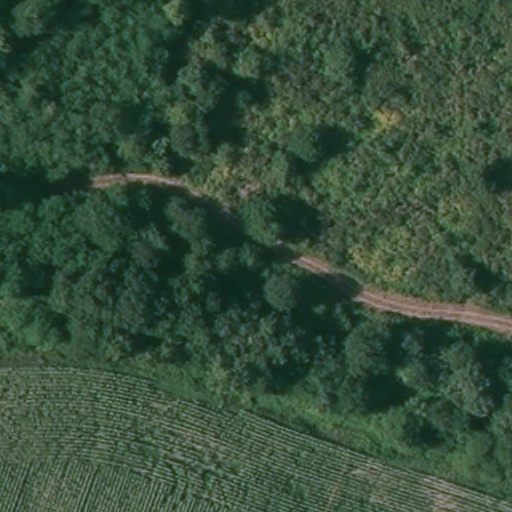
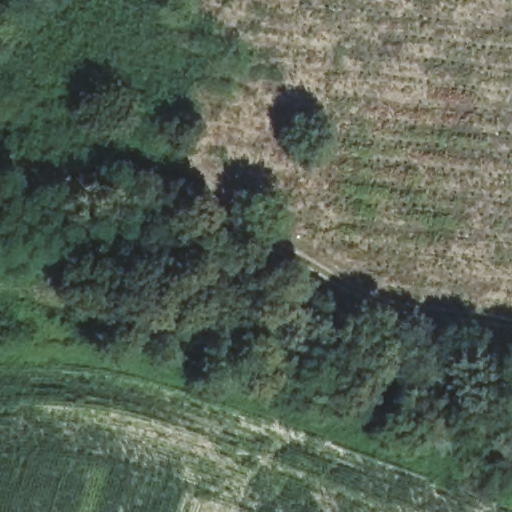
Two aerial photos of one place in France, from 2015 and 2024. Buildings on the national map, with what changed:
[]

